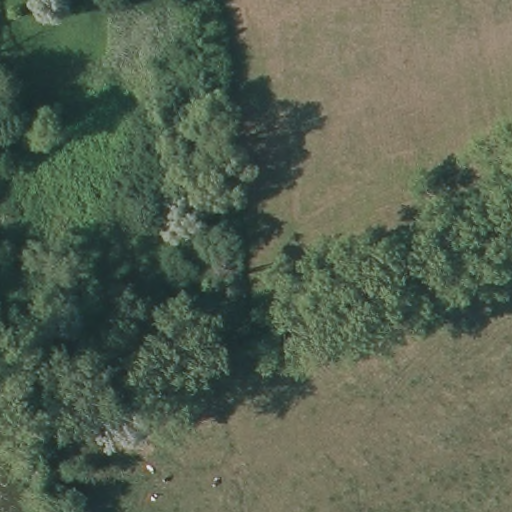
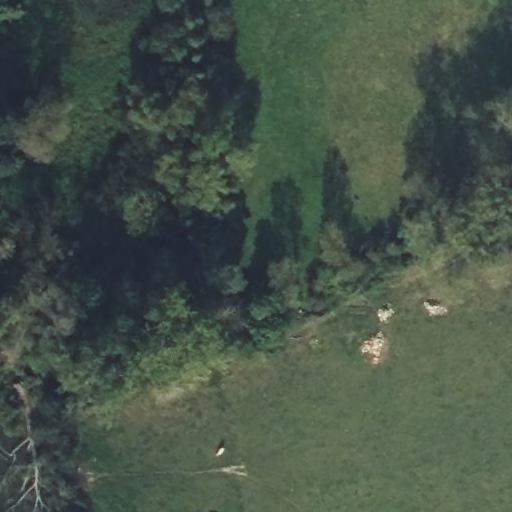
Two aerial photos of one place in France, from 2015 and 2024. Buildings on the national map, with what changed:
[]

